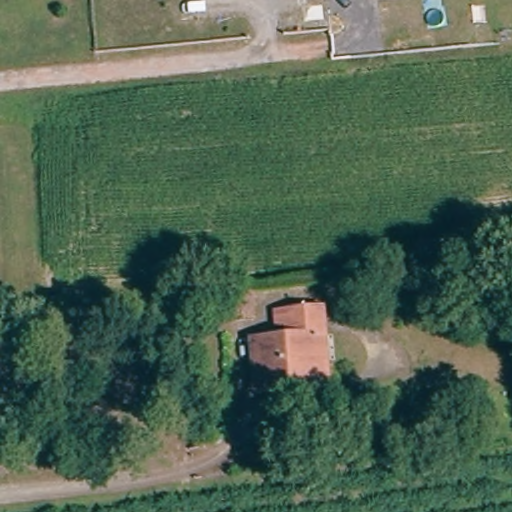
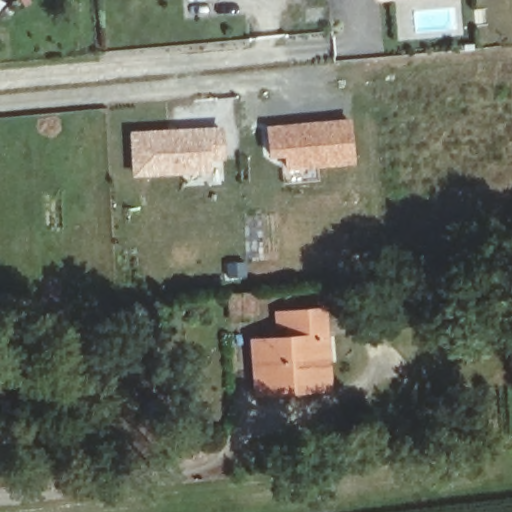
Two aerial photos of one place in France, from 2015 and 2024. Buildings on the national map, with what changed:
new [(351,116),(355,164),(285,170),(283,157),(270,159),(265,125),(351,116)]
new [(224,124),(225,160),(210,161),(211,172),(131,177),(129,130),(224,124)]
unchanged [(249,317),(230,319),(226,296),(246,294),(249,317)]
unchanged [(278,392),(256,395),(250,343),(285,339),(284,325),(274,326),(272,314),(320,309),(322,335),(328,386),(278,392)]

